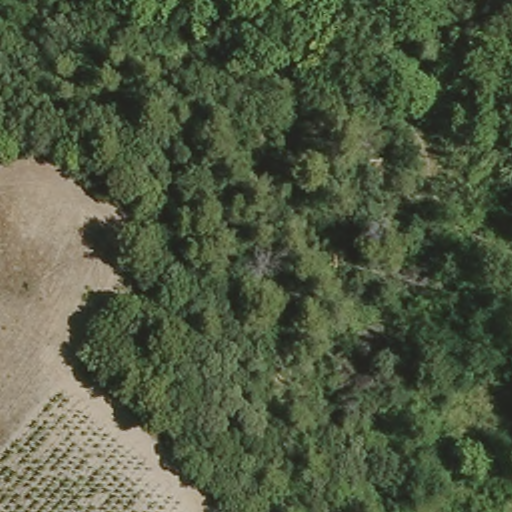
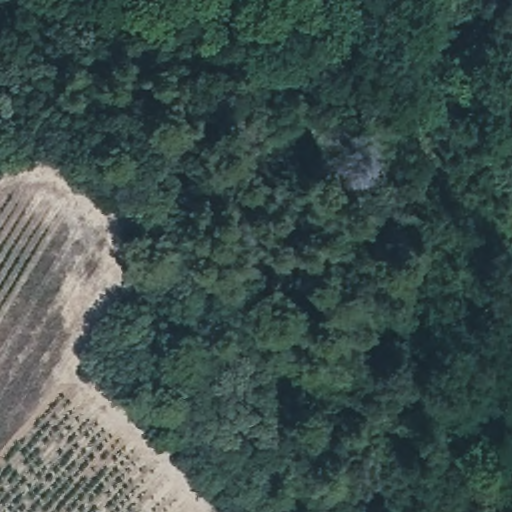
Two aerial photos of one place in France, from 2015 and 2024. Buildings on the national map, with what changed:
unchanged [(354,185),(352,157),(380,155),(383,183),(354,185)]

